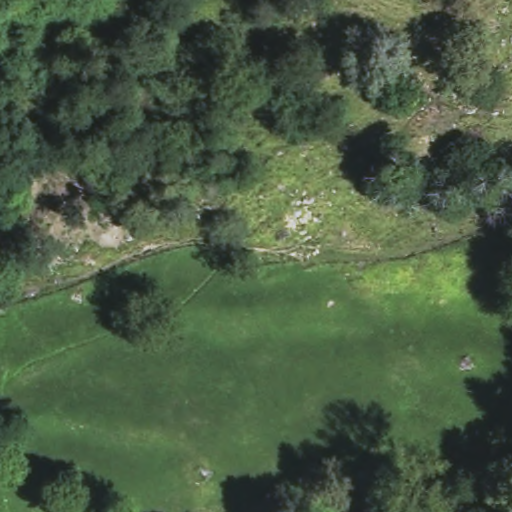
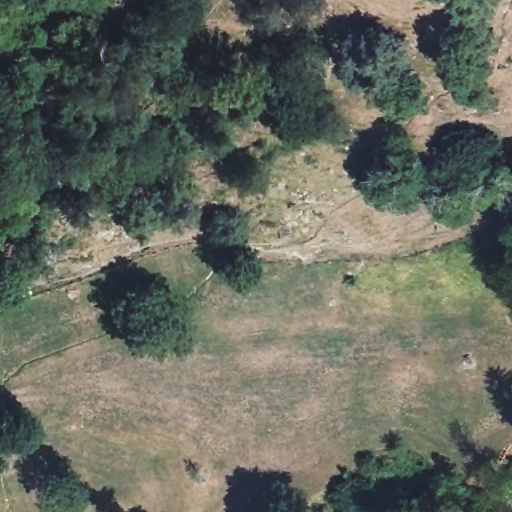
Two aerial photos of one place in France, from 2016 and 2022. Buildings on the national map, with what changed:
[]

